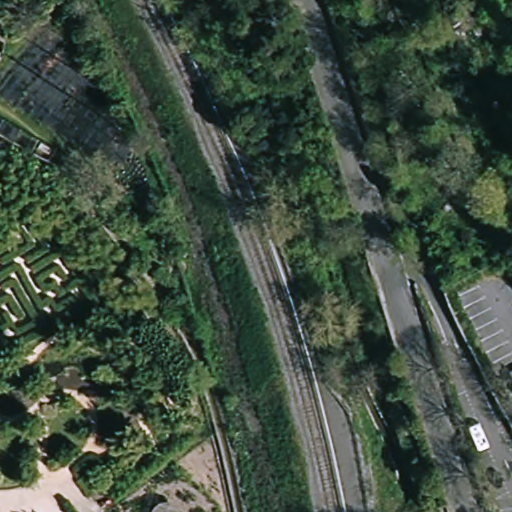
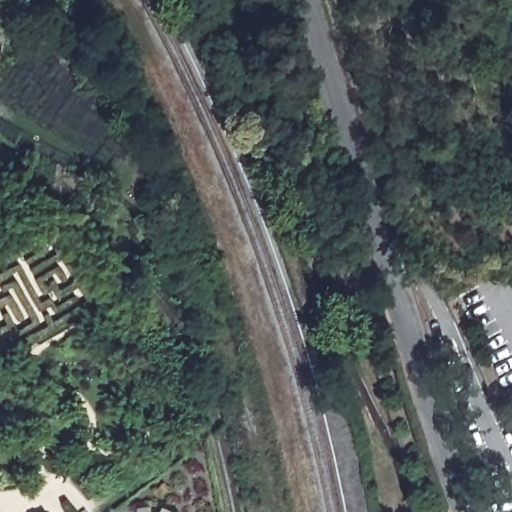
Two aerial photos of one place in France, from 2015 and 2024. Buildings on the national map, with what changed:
unchanged [(169,505),(173,507),(177,510),(177,512),(153,512),(155,510),(155,508),(159,506),(161,505),(165,505),(169,505)]

